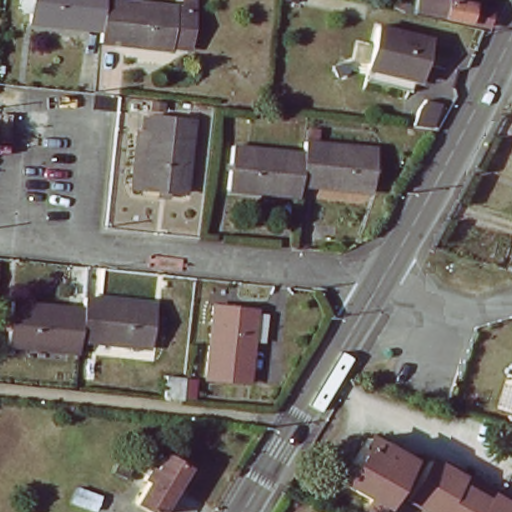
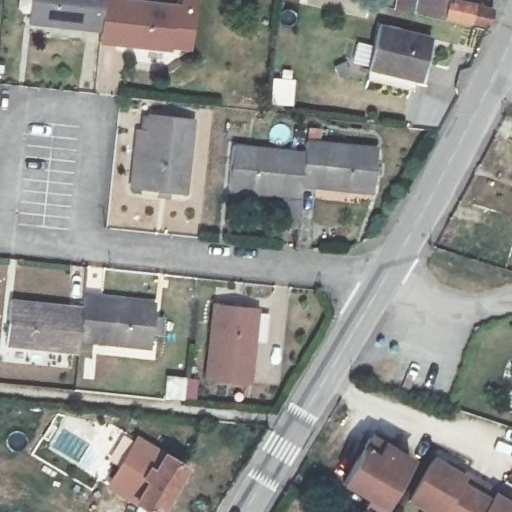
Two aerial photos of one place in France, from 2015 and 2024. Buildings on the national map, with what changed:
unchanged [(31,27),(34,0),(105,0),(101,34),(31,27)]
unchanged [(184,9),(185,0),(197,0),(191,54),(100,45),(101,34),(105,0),(122,0),(121,3),(184,9)]
unchanged [(426,12),(429,0),(456,0),(500,10),(497,29),(426,12)]
unchanged [(359,40),(364,41),(376,44),(381,27),(429,39),(419,80),(371,69),(353,65),(359,40)]
unchanged [(406,111),(422,114),(420,127),(404,126),(406,111)]
unchanged [(133,126),(144,127),(144,116),(193,120),(186,191),(128,185),(133,126)]
unchanged [(304,144),(304,131),(318,134),(317,145),(371,151),(367,194),(299,186),(303,155),(304,144)]
unchanged [(299,186),(299,197),(226,190),(230,147),(303,155),(299,186)]
unchanged [(78,308),(80,295),(149,303),(146,345),(75,338),(78,308)]
unchanged [(256,301),(248,372),(206,370),(214,298),(256,301)]
unchanged [(75,338),(73,350),(5,343),(9,302),(78,308),(75,338)]
unchanged [(163,388),(164,367),(184,370),(186,357),(201,359),(198,376),(184,375),(183,390),(163,388)]
new [(136,435),(164,454),(134,503),(105,488),(136,435)]
unchanged [(374,512),(371,512),(361,506),(366,497),(336,479),(364,435),(406,460),(374,512)]
unchanged [(159,512),(149,512),(134,503),(164,454),(186,467),(159,512)]
unchanged [(431,507),(416,498),(439,460),(457,470),(512,504),(512,512),(428,512),(431,507)]

